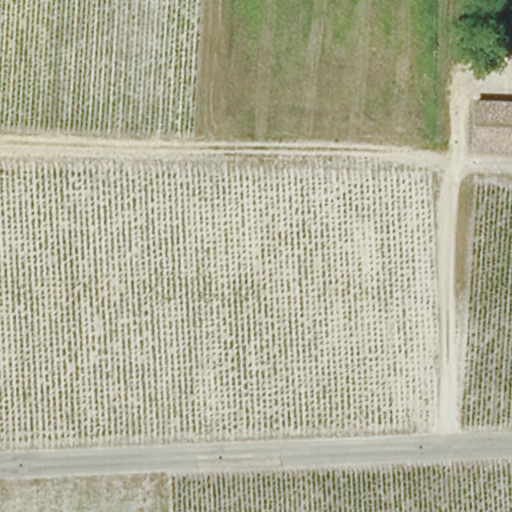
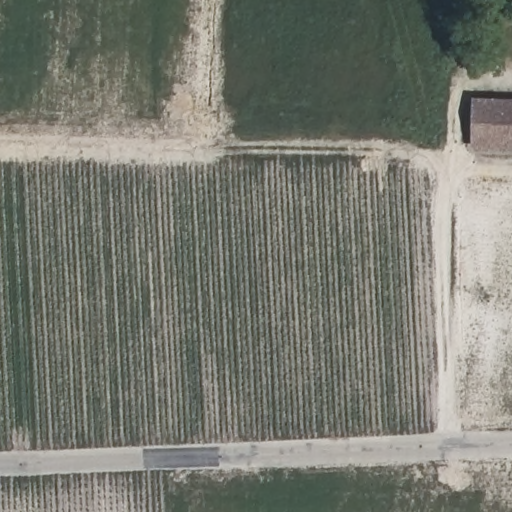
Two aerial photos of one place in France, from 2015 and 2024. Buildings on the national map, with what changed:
unchanged [(512,104),(512,149),(476,148),(479,103),(512,104)]

